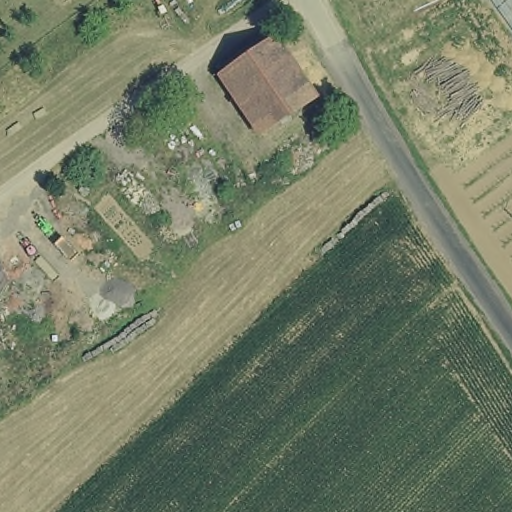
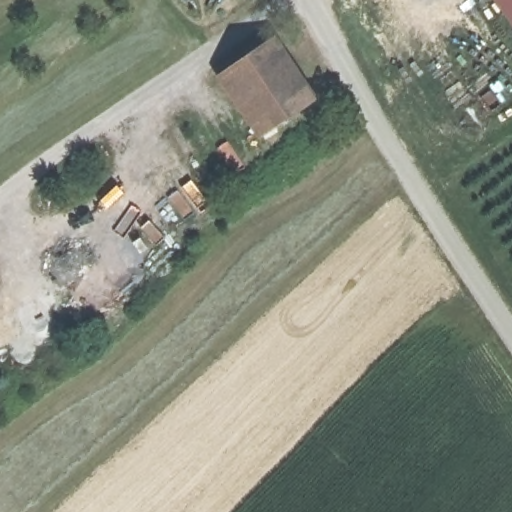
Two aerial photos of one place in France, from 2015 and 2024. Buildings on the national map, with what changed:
unchanged [(256,144),(208,76),(272,29),(319,97),(256,144)]

